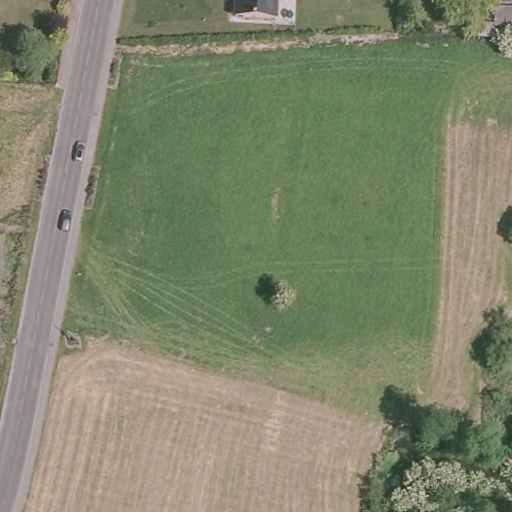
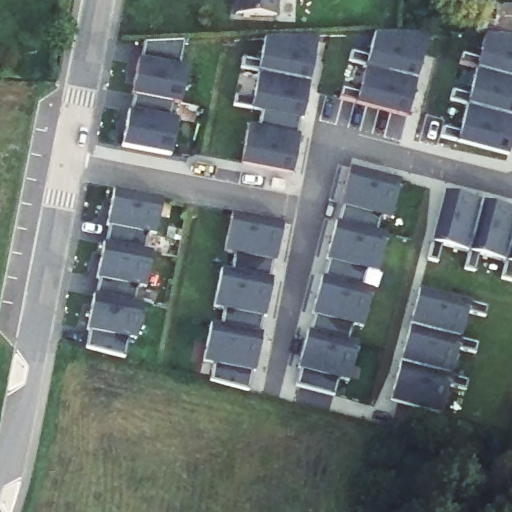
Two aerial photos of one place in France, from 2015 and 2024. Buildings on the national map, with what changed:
unchanged [(233,14),(233,0),(278,0),(277,17),(233,14)]
demolished [(512,22),(512,39),(492,37),(493,21),(512,22)]
new [(362,103),(375,34),(430,32),(411,115),(362,103)]
new [(486,33),(512,33),(512,150),(511,154),(462,141),(486,33)]
new [(297,173),(242,163),(248,124),(262,126),(265,108),(253,108),(267,36),(319,36),(297,173)]
new [(185,40),(180,64),(192,66),(185,101),(173,101),(171,118),(180,121),(175,154),(127,145),(147,43),(185,40)]
new [(307,367),(299,364),(353,164),(405,179),(355,380),(341,379),(337,398),(300,388),(307,367)]
new [(86,348),(114,187),(165,196),(160,231),(150,230),(147,249),(155,249),(148,284),(137,283),(135,299),(145,300),(140,336),(130,335),(125,357),(86,348)]
new [(512,204),(512,262),(436,241),(447,188),(512,204)]
new [(215,379),(217,364),(205,360),(213,319),(223,322),(225,307),(217,303),(223,266),(235,267),(235,252),(227,247),(233,210),(282,224),(253,390),(215,379)]
new [(422,287),(477,302),(446,417),(395,401),(422,287)]

